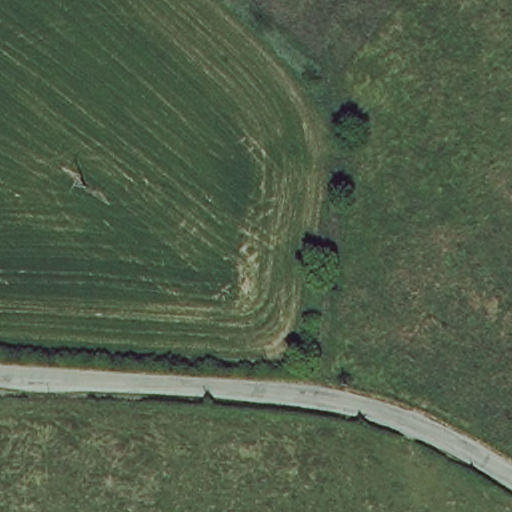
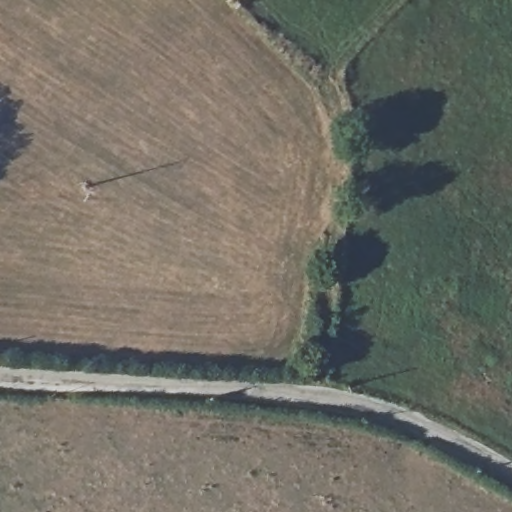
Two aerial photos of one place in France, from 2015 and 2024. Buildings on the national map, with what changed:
[]

